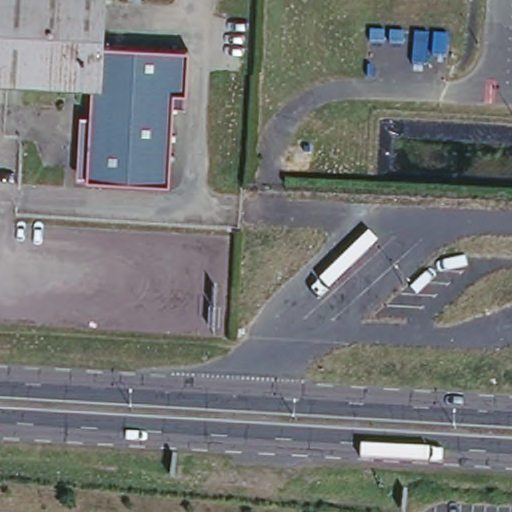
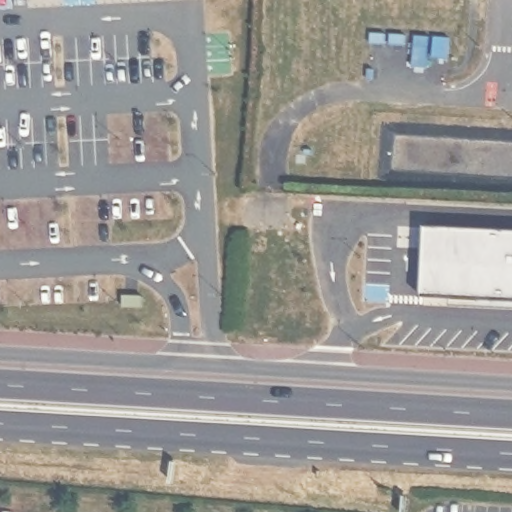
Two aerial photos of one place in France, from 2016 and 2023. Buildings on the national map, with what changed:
demolished [(99,85),(0,79),(0,0),(104,0),(99,85)]
demolished [(185,46),(182,96),(170,95),(169,181),(85,176),(89,84),(99,85),(101,44),(185,46)]
new [(512,242),(512,311),(420,306),(423,238),(512,242)]

